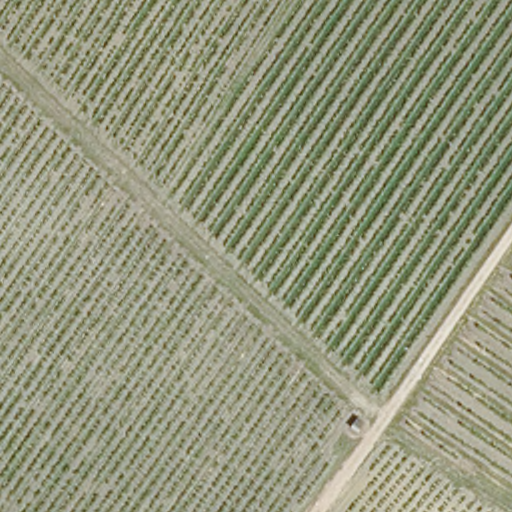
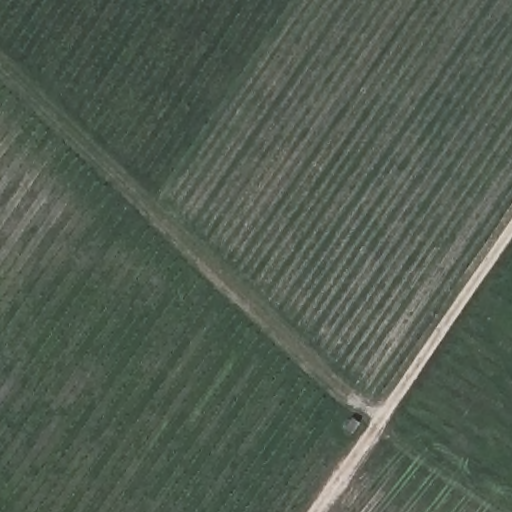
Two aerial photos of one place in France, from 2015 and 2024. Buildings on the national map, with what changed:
unchanged [(343,422),(347,412),(364,422),(360,433),(343,422)]

